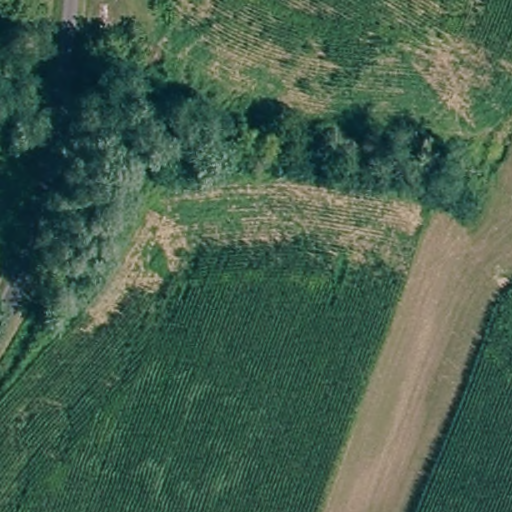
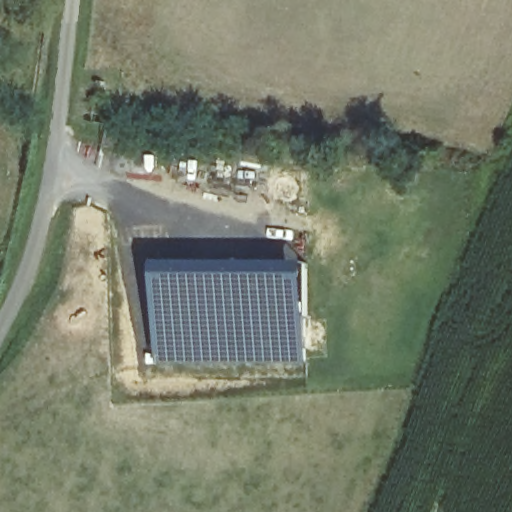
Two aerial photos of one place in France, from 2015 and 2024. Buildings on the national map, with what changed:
new [(239,262),(239,267),(282,266),(282,261),(310,262),(308,365),(156,365),(155,261),(239,262)]

